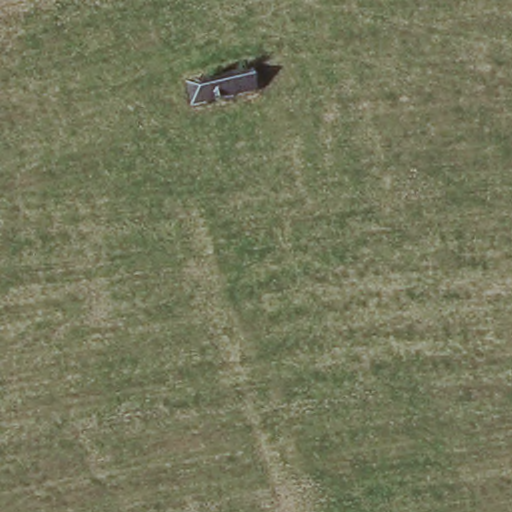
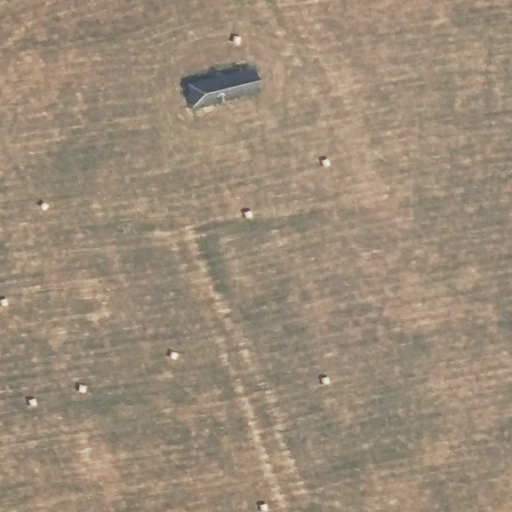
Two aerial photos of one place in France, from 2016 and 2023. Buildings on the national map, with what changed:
unchanged [(247,69),(251,92),(189,103),(185,84),(247,69)]

